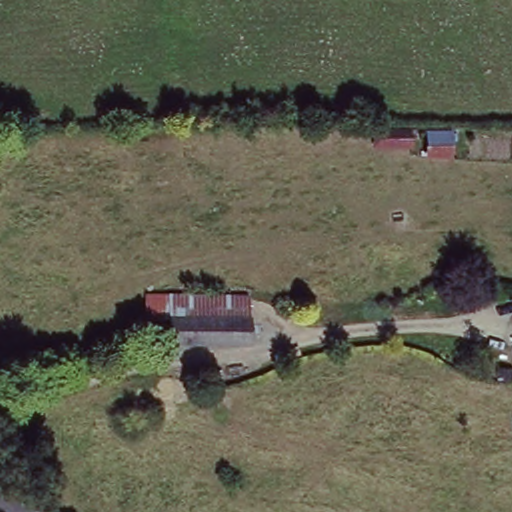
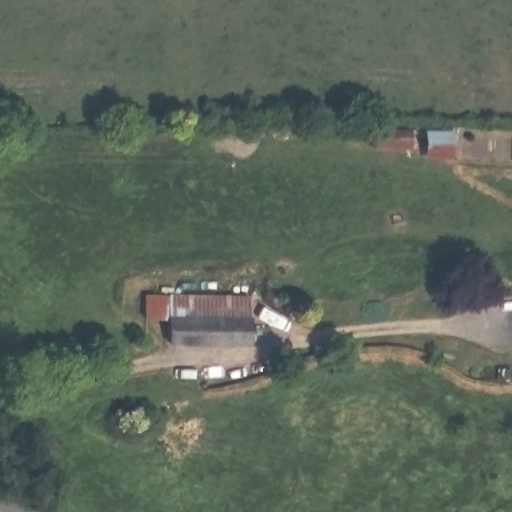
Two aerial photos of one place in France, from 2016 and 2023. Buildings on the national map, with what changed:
unchanged [(407,130),(407,140),(376,140),(377,129),(407,130)]
unchanged [(450,130),(451,156),(426,158),(425,132),(450,130)]
unchanged [(251,344),(174,344),(175,319),(150,319),(150,295),(251,296),(251,344)]

